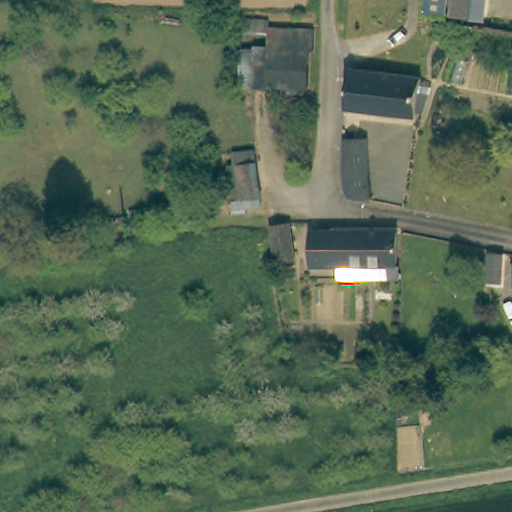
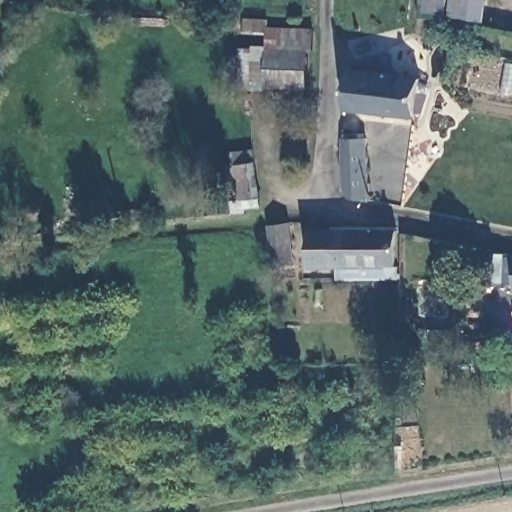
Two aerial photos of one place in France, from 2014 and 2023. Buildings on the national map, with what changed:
unchanged [(468,37),(445,36),(446,15),(422,13),(423,0),(473,0),(468,37)]
unchanged [(244,88),(245,49),(273,50),(273,29),(318,29),(320,51),(312,51),(312,88),(244,88)]
unchanged [(343,103),(344,65),(418,76),(413,115),(343,103)]
unchanged [(367,195),(340,197),(340,137),(365,135),(367,195)]
unchanged [(232,209),(227,164),(235,163),(234,152),(254,149),(260,206),(232,209)]
unchanged [(266,225),(285,223),(288,259),(268,261),(266,225)]
unchanged [(363,272),(308,271),(306,234),(399,231),(399,235),(399,287),(383,287),(363,287),(363,272)]

